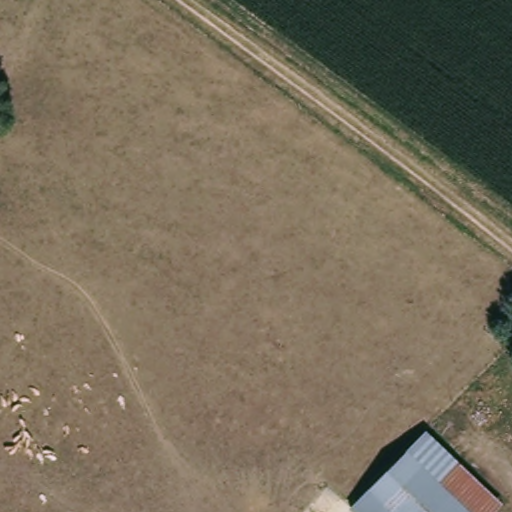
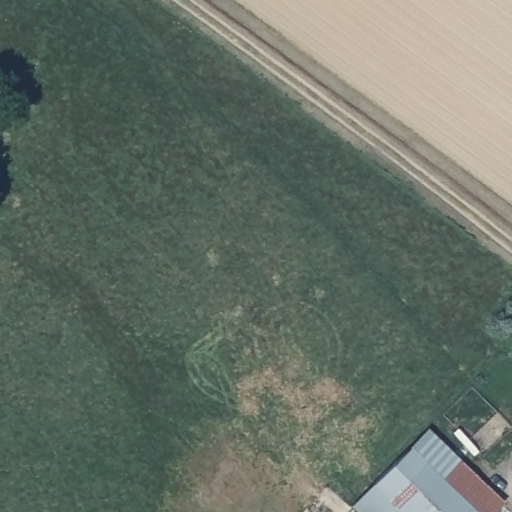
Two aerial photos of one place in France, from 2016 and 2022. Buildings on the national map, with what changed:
unchanged [(505,506),(499,512),(354,512),(353,511),(430,431),(458,459),(505,506)]

